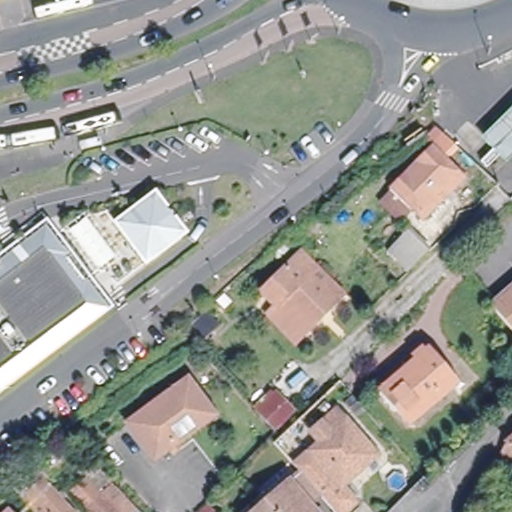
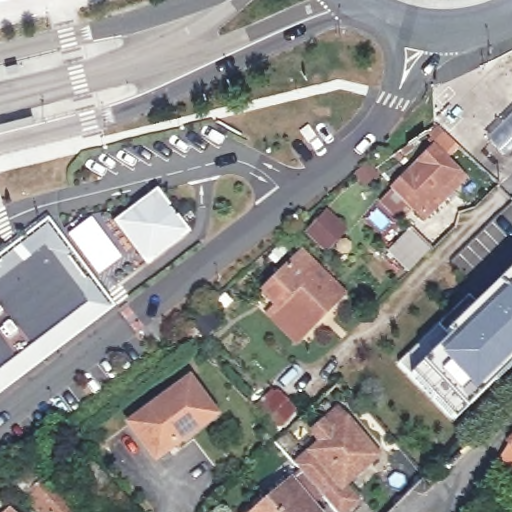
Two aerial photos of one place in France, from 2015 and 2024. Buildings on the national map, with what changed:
unchanged [(483,140),(512,110),(512,156),(506,162),(483,140)]
unchanged [(392,189),(432,147),(466,177),(426,220),(392,189)]
unchanged [(190,232),(150,262),(120,222),(160,192),(190,232)]
unchanged [(119,253),(100,266),(72,228),(90,214),(119,253)]
unchanged [(408,228),(429,248),(410,267),(389,247),(408,228)]
unchanged [(59,231),(113,302),(8,383),(0,371),(0,279),(59,231)]
unchanged [(322,285),(336,300),(307,328),(273,293),(310,257),(330,277),(322,285)]
new [(399,361),(466,290),(476,299),(512,266),(512,366),(467,409),(454,417),(407,372),(399,361)]
demolished [(512,332),(487,302),(512,281),(512,332)]
demolished [(380,391),(428,352),(456,386),(408,425),(380,391)]
unchanged [(128,414),(191,377),(213,413),(149,449),(128,414)]
unchanged [(255,411),(276,392),(293,410),(273,430),(255,411)]
unchanged [(304,471),(297,463),(324,440),(315,431),(340,409),(380,454),(346,485),(360,500),(346,512),(341,512),(324,493),(304,471)]
unchanged [(506,438),(512,433),(512,461),(500,449),(506,438)]
unchanged [(59,457),(47,468),(45,466),(36,474),(70,510),(69,512),(35,512),(8,482),(47,445),(59,457)]
unchanged [(101,498),(88,509),(53,473),(67,460),(80,475),(92,464),(128,503),(119,512),(113,512),(101,498)]
unchanged [(320,512),(242,512),(285,474),(293,482),(304,471),(324,493),(312,503),(320,512)]
unchanged [(12,506),(18,512),(7,512),(12,506)]

